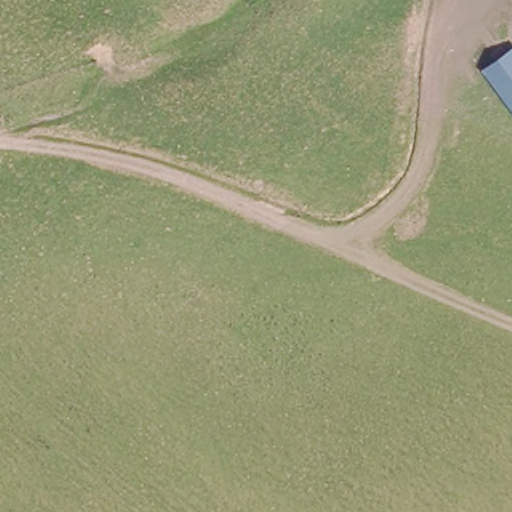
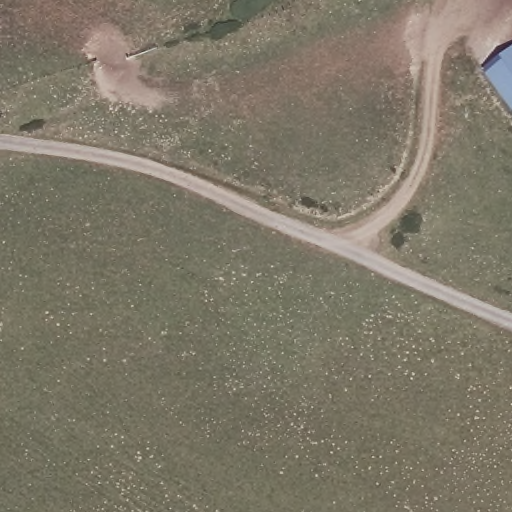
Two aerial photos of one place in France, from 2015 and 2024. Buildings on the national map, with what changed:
unchanged [(479,69),(512,50),(512,113),(479,69)]

